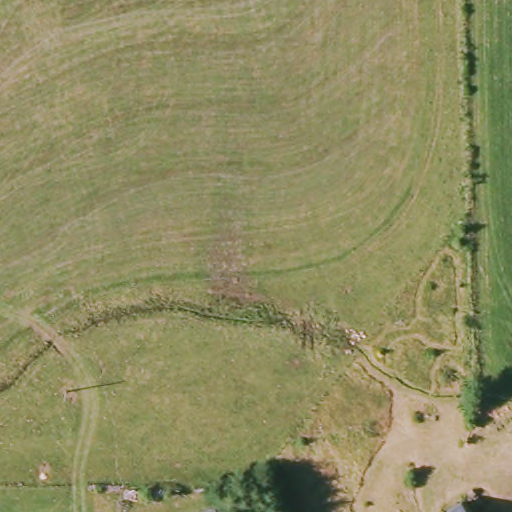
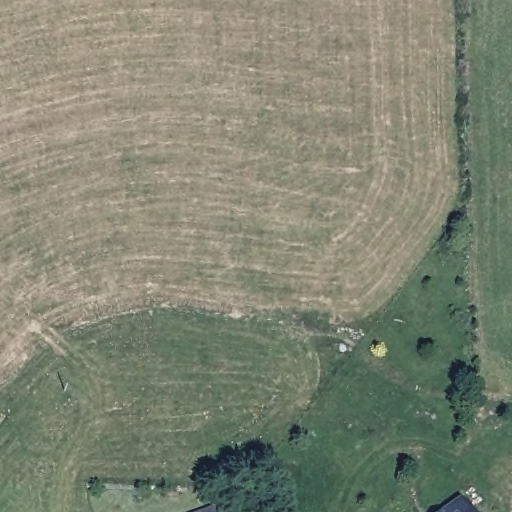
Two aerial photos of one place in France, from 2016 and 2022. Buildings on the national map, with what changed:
unchanged [(475,512),(441,512),(465,496),(475,512)]

